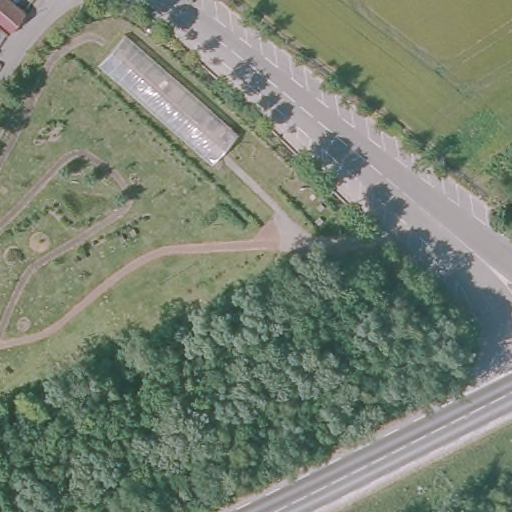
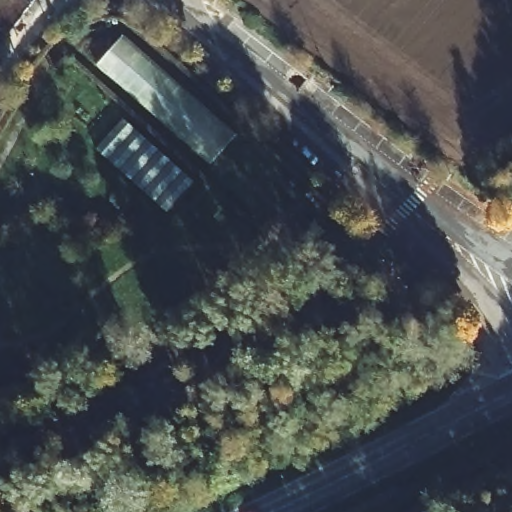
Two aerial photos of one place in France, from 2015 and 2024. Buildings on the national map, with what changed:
unchanged [(3,34),(0,31),(0,0),(7,0),(21,12),(3,34)]
new [(168,211),(98,147),(124,118),(194,181),(168,211)]

